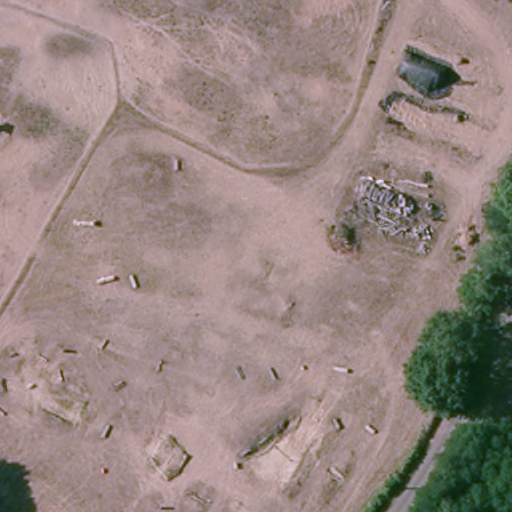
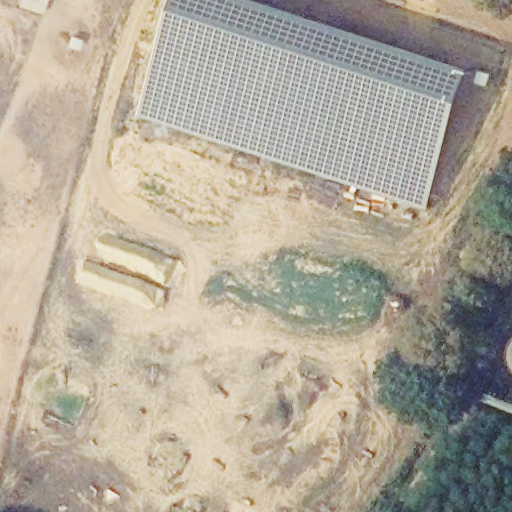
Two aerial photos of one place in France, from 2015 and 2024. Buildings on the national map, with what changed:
new [(179,0),(273,0),(476,66),(430,209),(141,114),(179,0)]

